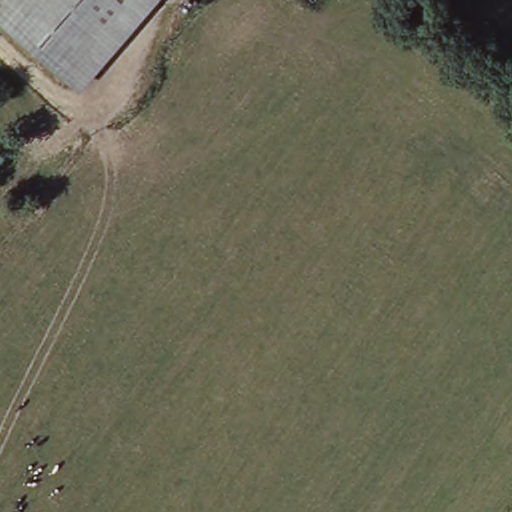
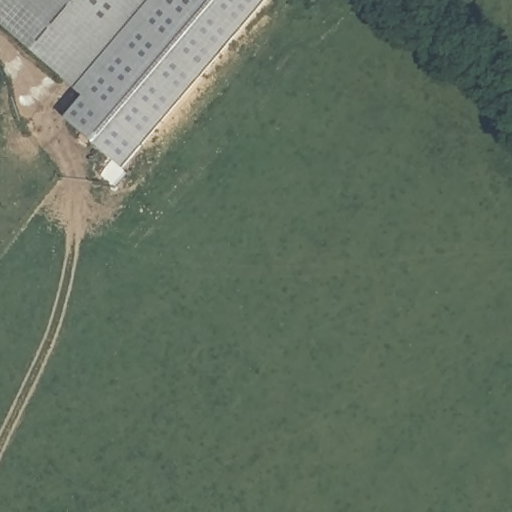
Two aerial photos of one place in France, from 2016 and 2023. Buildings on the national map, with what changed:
unchanged [(0,28),(0,0),(164,0),(79,96),(0,28)]
new [(269,0),(124,170),(65,121),(83,99),(79,96),(164,0),(269,0)]

